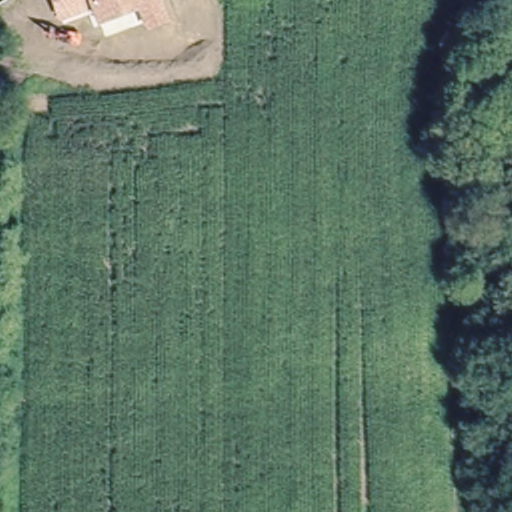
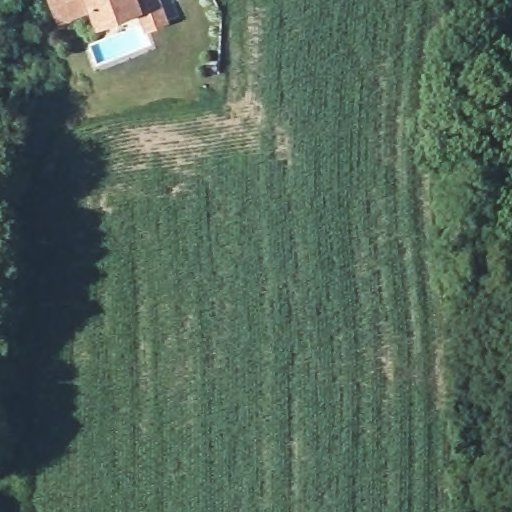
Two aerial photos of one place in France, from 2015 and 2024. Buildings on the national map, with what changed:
unchanged [(172,23),(148,31),(139,11),(96,27),(90,9),(58,22),(50,0),(163,0),(172,23)]

